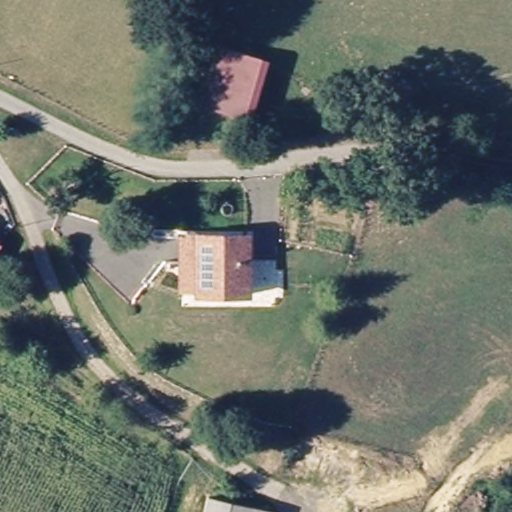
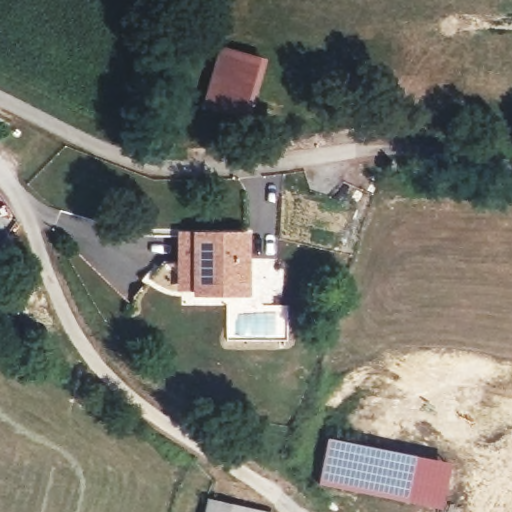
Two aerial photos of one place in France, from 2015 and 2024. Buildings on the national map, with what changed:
unchanged [(271,64),(248,122),(207,106),(229,47),(271,64)]
unchanged [(225,295),(198,293),(198,288),(185,287),(184,261),(184,235),(247,235),(249,282),(250,295),(225,295)]
unchanged [(0,254),(0,241),(5,246),(0,254)]
new [(419,456),(409,502),(320,483),(329,438),(419,456)]
new [(419,456),(452,463),(442,509),(409,502),(419,456)]
unchanged [(257,512),(210,512),(214,496),(259,506),(257,512)]

